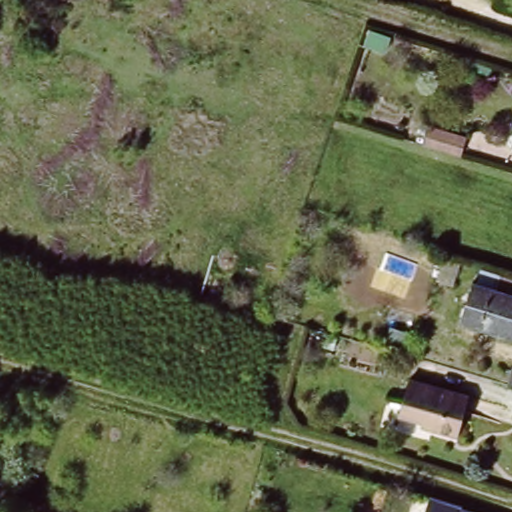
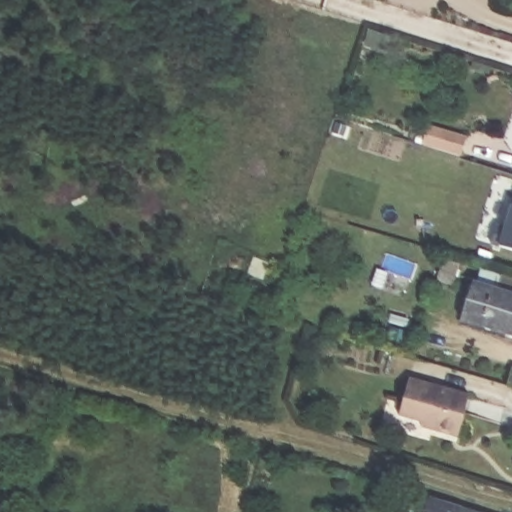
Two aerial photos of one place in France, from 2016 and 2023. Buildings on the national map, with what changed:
unchanged [(428,125),(466,139),(462,154),(422,143),(428,125)]
new [(500,246),(490,244),(496,224),(505,226),(511,204),(512,201),(512,250),(500,246)]
unchanged [(457,320),(469,281),(512,294),(512,337),(457,320)]
unchanged [(512,366),(512,384),(502,382),(507,365),(512,366)]
unchanged [(432,427),(434,423),(399,414),(411,379),(468,394),(457,433),(432,427)]
unchanged [(451,512),(425,512),(430,494),(454,502),(451,512)]
unchanged [(454,502),(486,512),(451,512),(454,502)]

